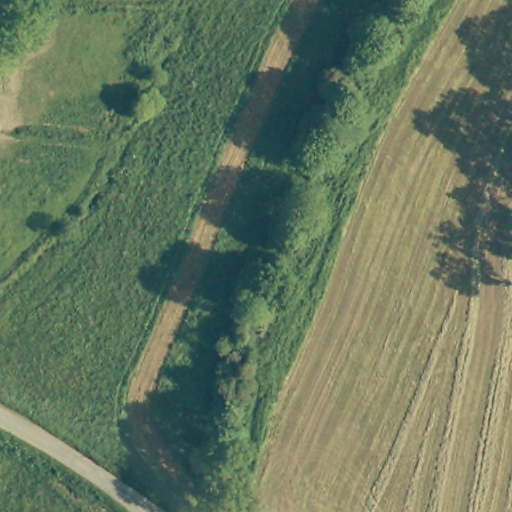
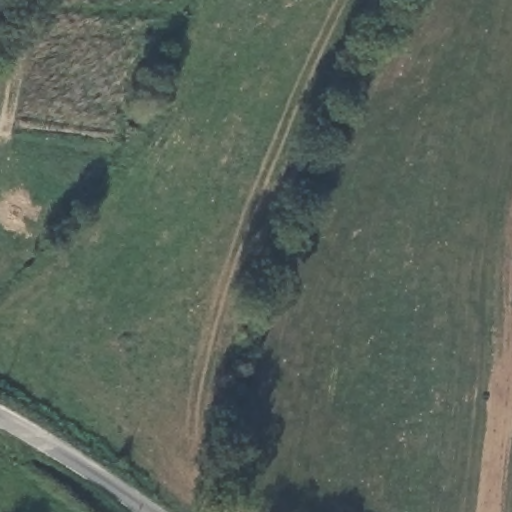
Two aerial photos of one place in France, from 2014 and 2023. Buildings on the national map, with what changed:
[]

